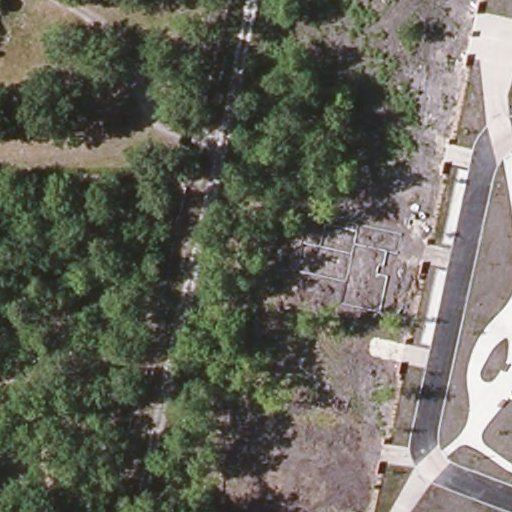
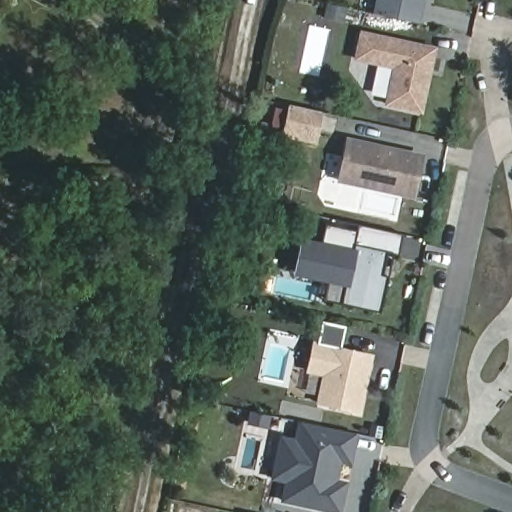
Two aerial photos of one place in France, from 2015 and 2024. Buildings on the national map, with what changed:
new [(424,0),(420,24),(372,14),(375,0),(424,0)]
new [(360,31),(437,46),(423,114),(384,106),(392,68),(353,61),(360,31)]
new [(316,145),(282,136),(288,105),(325,111),(316,145)]
new [(415,200),(335,183),(346,136),(425,154),(415,200)]
new [(292,276),(300,238),(322,242),(327,225),(358,232),(360,226),(402,235),(399,254),(387,252),(383,276),(387,278),(380,312),(341,305),(345,286),(292,276)]
new [(303,372),(310,341),(373,354),(359,414),(315,405),(321,375),(303,372)]
new [(342,512),(328,512),(280,503),(285,482),(271,480),(279,436),(293,440),(297,421),(357,434),(351,465),(338,463),(336,479),(348,482),(342,512)]

